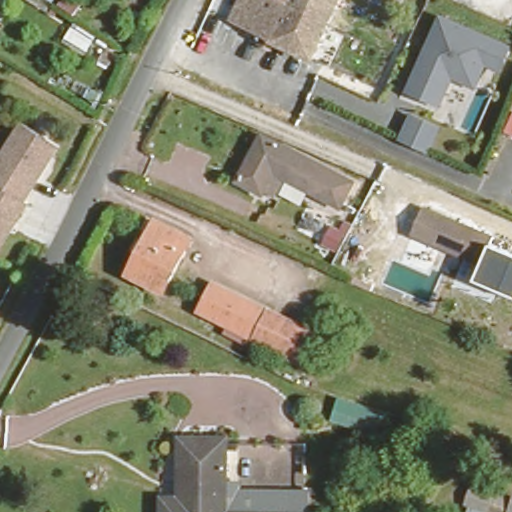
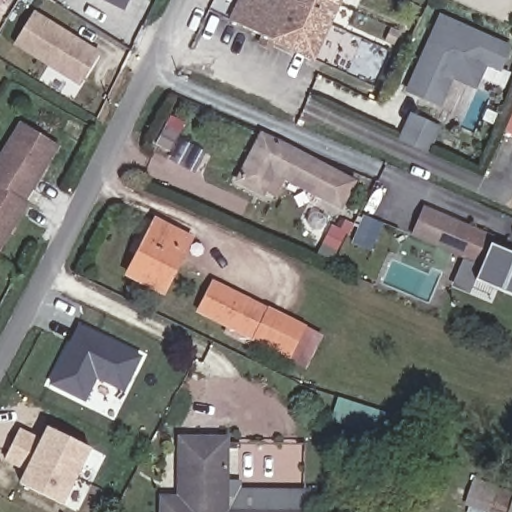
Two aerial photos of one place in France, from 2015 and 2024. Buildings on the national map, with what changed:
new [(124,9),(104,0),(130,0),(124,9)]
unchanged [(259,29),(220,12),(225,0),(337,0),(314,52),(270,33),(268,40),(256,36),(259,29)]
new [(36,10),(101,50),(82,82),(17,41),(36,10)]
unchanged [(503,75),(487,68),(477,91),(452,80),(439,109),(405,96),(441,14),(512,46),(512,51),(503,75)]
unchanged [(495,30),(499,17),(512,22),(507,34),(495,30)]
new [(416,114),(437,122),(426,150),(405,140),(416,114)]
unchanged [(511,115),(512,114),(512,115),(511,115)]
unchanged [(0,150),(15,125),(60,148),(0,256),(0,150)]
unchanged [(342,198),(274,166),(264,185),(240,174),(261,127),(354,171),(342,198)]
unchanged [(425,199),(495,229),(488,244),(481,262),(410,234),(425,199)]
unchanged [(128,273),(155,219),(188,235),(163,289),(128,273)]
unchanged [(481,262),(488,244),(512,254),(512,295),(474,279),(481,262)]
unchanged [(307,319),(292,356),(193,308),(210,278),(307,319)]
new [(94,370),(82,394),(48,377),(63,348),(70,335),(77,320),(138,350),(121,384),(94,370)]
unchanged [(392,439),(330,420),(335,397),(399,420),(392,439)]
new [(79,472),(16,439),(23,424),(45,436),(52,422),(94,444),(79,472)]
unchanged [(180,434),(227,437),(222,502),(256,505),(288,507),(302,509),(302,512),(157,512),(157,502),(175,503),(180,434)]
new [(64,501),(23,479),(30,465),(8,454),(16,439),(79,472),(64,501)]
unchanged [(487,512),(465,505),(470,483),(512,496),(512,512),(487,512)]

